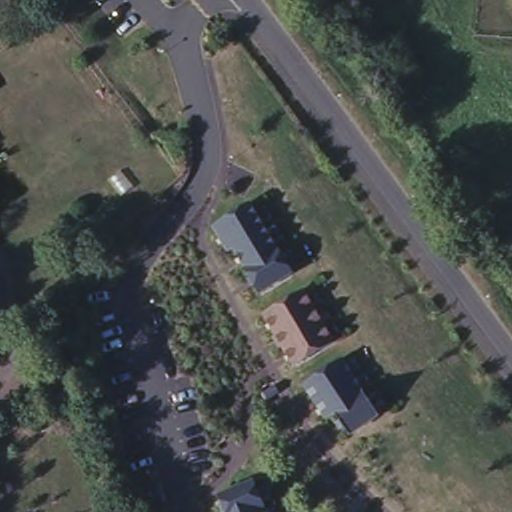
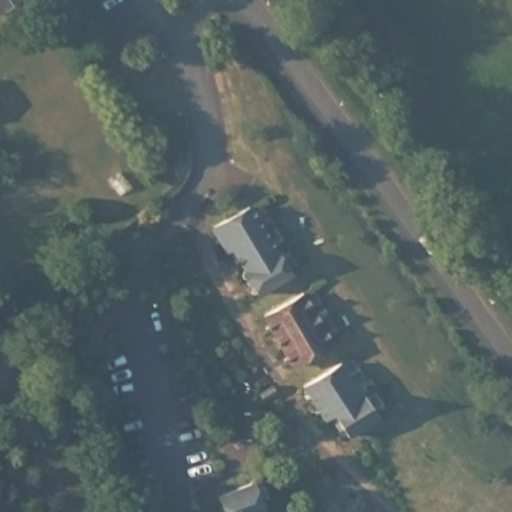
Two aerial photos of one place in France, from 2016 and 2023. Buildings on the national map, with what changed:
unchanged [(290,271),(254,293),(212,221),(248,200),(290,271)]
unchanged [(16,279),(7,265),(24,253),(16,241),(27,233),(35,245),(45,259),(16,279)]
unchanged [(304,287),(334,340),(291,366),(262,314),(304,287)]
unchanged [(0,405),(0,358),(4,357),(16,401),(0,405)]
unchanged [(378,411),(346,436),(330,414),(322,418),(300,382),(344,358),(378,411)]
unchanged [(267,512),(221,512),(216,495),(254,480),(267,512)]

